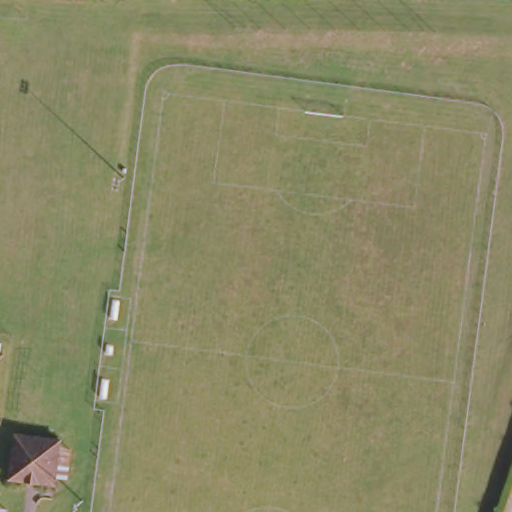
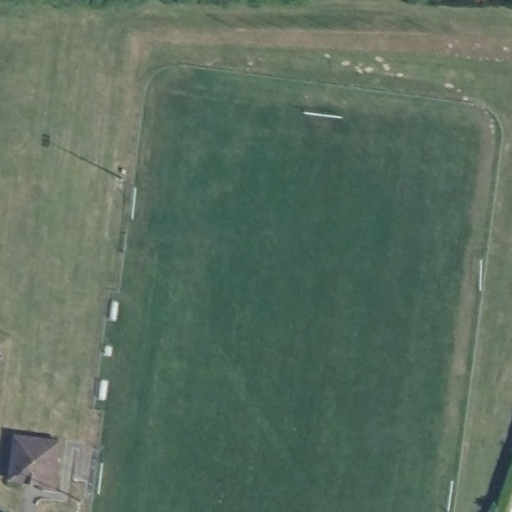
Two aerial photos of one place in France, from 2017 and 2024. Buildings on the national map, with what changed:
unchanged [(12,477),(18,433),(63,440),(55,484),(12,477)]

